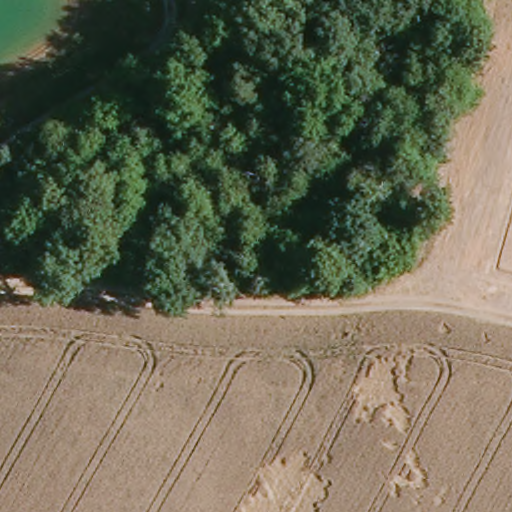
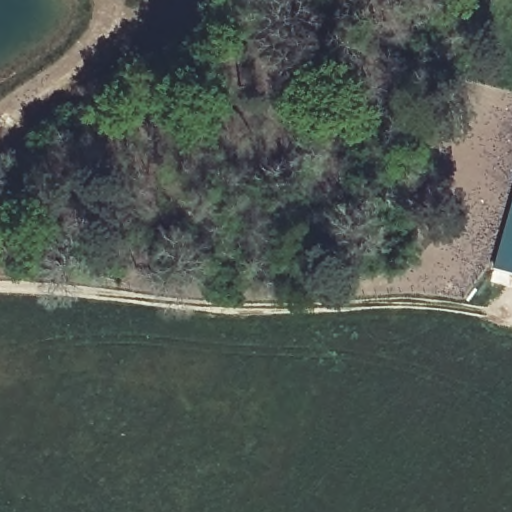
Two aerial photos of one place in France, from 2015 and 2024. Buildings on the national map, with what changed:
new [(492,267),(512,195),(512,273),(492,267)]

